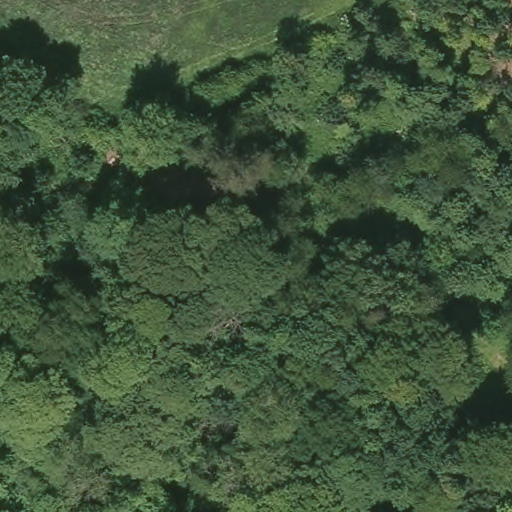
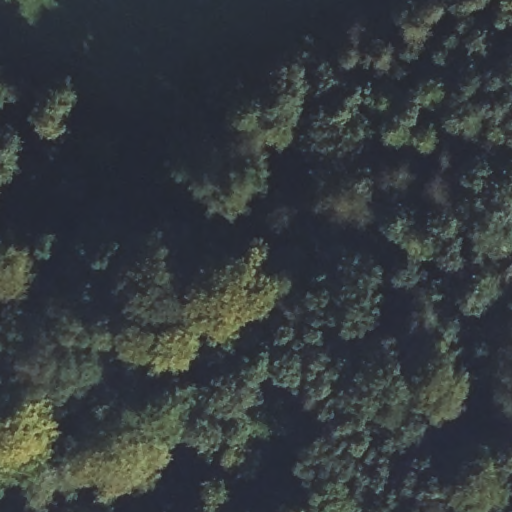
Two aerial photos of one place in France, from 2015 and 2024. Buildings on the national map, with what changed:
[]

